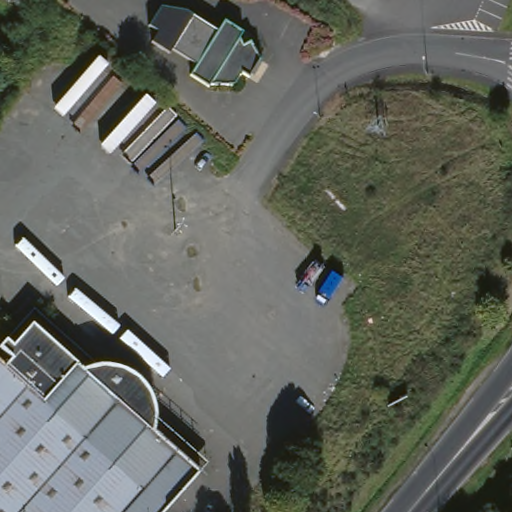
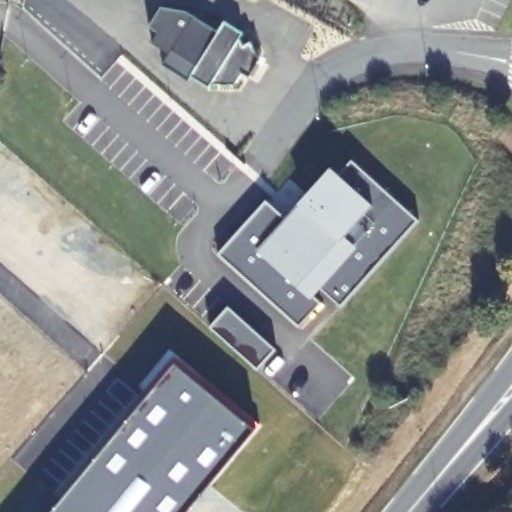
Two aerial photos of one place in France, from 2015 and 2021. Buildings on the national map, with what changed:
unchanged [(162,4),(186,9),(219,30),(226,20),(246,31),(240,40),(261,54),(250,75),(243,70),(229,89),(214,78),(211,82),(193,71),(200,62),(173,48),(171,51),(153,41),(159,32),(150,26),(162,4)]
new [(260,196),(284,215),(304,192),(307,195),(343,152),(412,211),(337,299),(314,280),(308,287),(317,296),(296,321),(213,250),(260,196)]
new [(226,304),(274,345),(256,366),(209,325),(226,304)]
demolished [(0,347),(34,313),(96,368),(106,370),(121,376),(136,385),(147,399),(154,418),(151,437),(198,474),(165,512),(0,512),(0,347)]
new [(255,429),(183,512),(44,512),(177,360),(255,429)]

